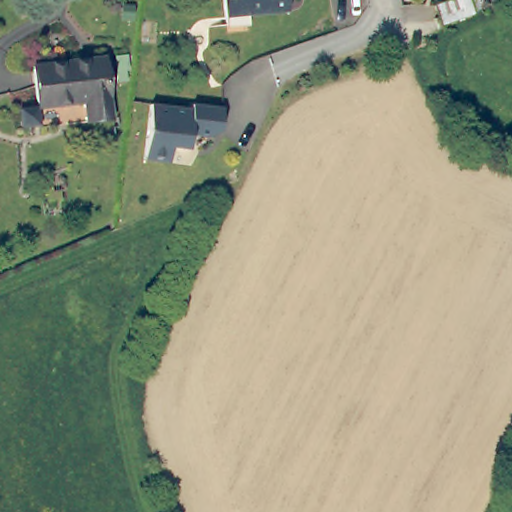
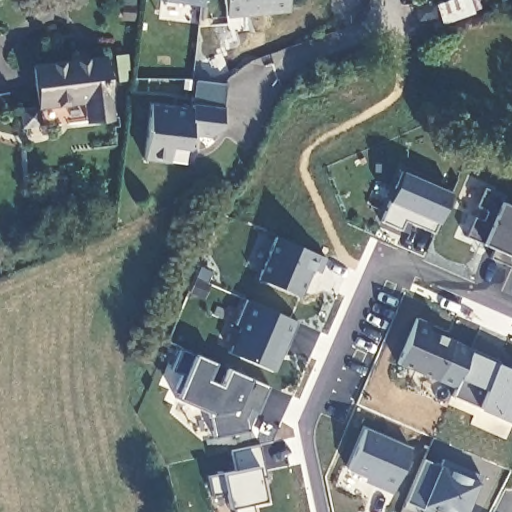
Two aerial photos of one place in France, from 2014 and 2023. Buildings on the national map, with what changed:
unchanged [(285,8),(225,15),(224,0),(284,0),(285,8)]
unchanged [(464,12),(441,22),(433,2),(438,0),(459,0),(464,12)]
unchanged [(111,117),(86,120),(82,101),(37,106),(35,89),(32,64),(104,56),(111,117)]
unchanged [(189,127),(187,142),(171,139),(170,144),(169,155),(144,151),(144,149),(150,97),(191,102),(192,96),(222,99),(220,113),(219,122),(210,129),(201,128),(189,127)]
new [(390,200),(401,171),(452,192),(438,223),(435,231),(405,219),(401,228),(383,220),(390,200)]
new [(475,217),(484,221),(488,209),(477,205),(485,187),(501,195),(499,201),(501,201),(512,206),(512,267),(491,257),(495,248),(483,244),(466,237),(475,217)]
new [(327,257),(320,274),(311,271),(300,296),(257,278),(276,237),(318,254),(327,257)]
new [(251,302),(298,320),(275,372),(230,354),(242,326),(236,323),(246,300),(251,302)]
new [(457,388),(436,380),(397,363),(416,319),(430,325),(427,333),(497,362),(512,369),(512,423),(479,408),(453,395),(457,388)]
new [(214,413),(177,398),(180,392),(175,390),(182,373),(172,370),(181,349),(196,356),(213,362),(206,381),(222,386),(229,371),(248,378),(268,387),(257,412),(250,409),(247,418),(249,429),(215,437),(214,413)]
new [(348,468),(366,429),(412,449),(392,493),(366,482),(367,477),(348,468)]
new [(260,477),(265,501),(250,503),(252,512),(231,512),(231,507),(228,508),(225,493),(211,496),(206,476),(234,471),(230,450),(259,444),(266,476),(260,477)]
new [(444,459),(482,476),(480,482),(468,512),(438,512),(423,506),(422,508),(406,501),(424,459),(440,466),(444,459)]

